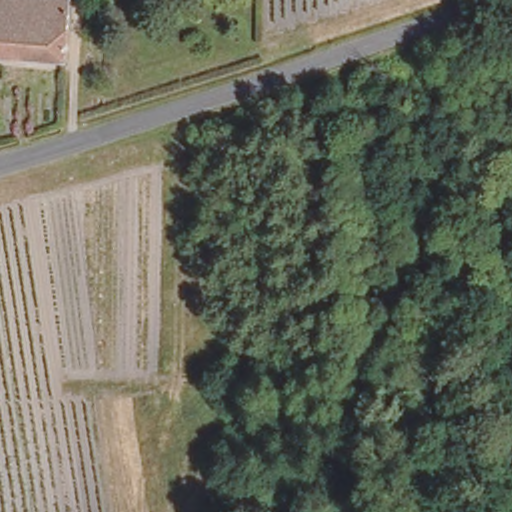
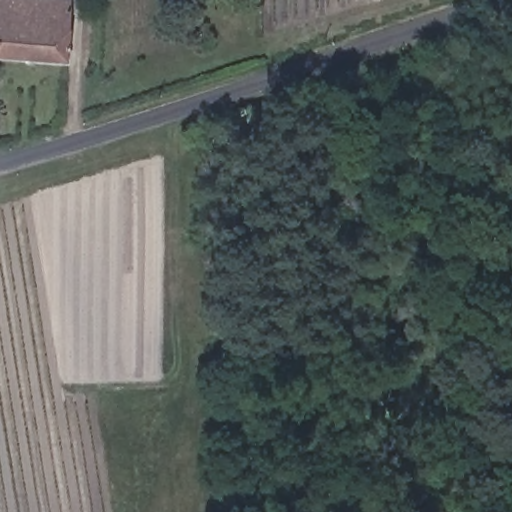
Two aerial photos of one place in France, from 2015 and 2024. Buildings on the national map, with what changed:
unchanged [(0,56),(0,0),(66,0),(63,61),(0,56)]

